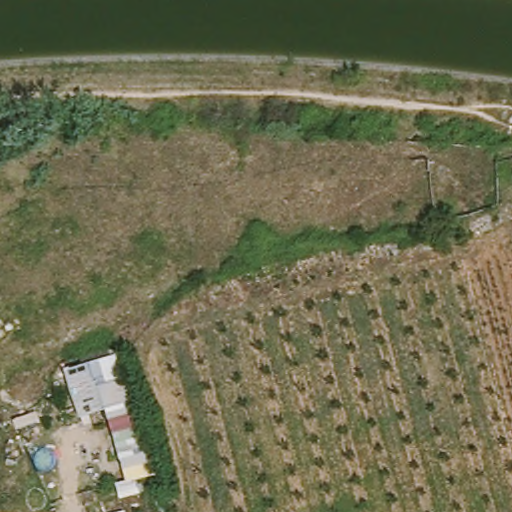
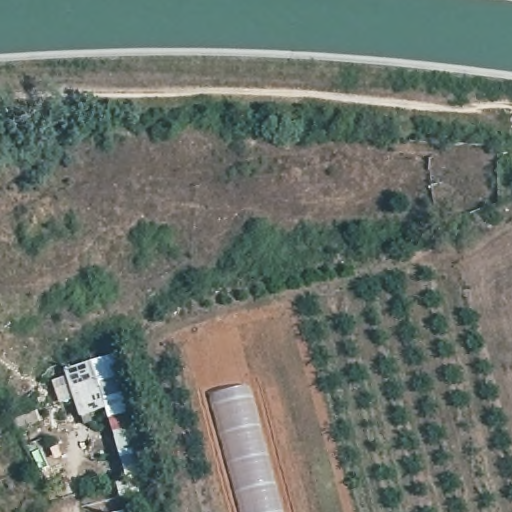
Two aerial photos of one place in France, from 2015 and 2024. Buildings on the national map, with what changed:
unchanged [(117,354),(128,392),(133,390),(157,472),(123,480),(103,411),(75,418),(61,369),(117,354)]
new [(282,512),(238,512),(205,391),(248,382),(282,512)]

